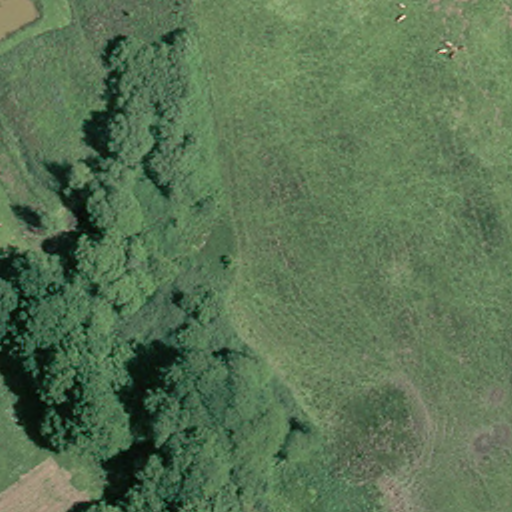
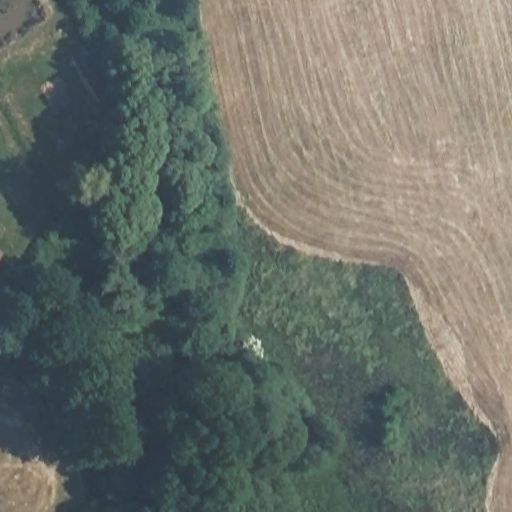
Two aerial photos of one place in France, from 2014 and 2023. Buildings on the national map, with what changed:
[]

